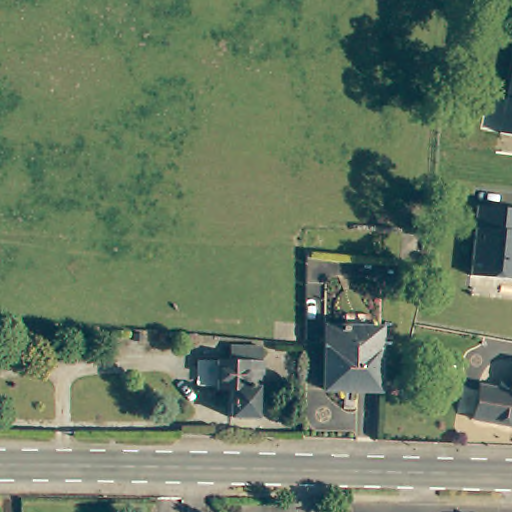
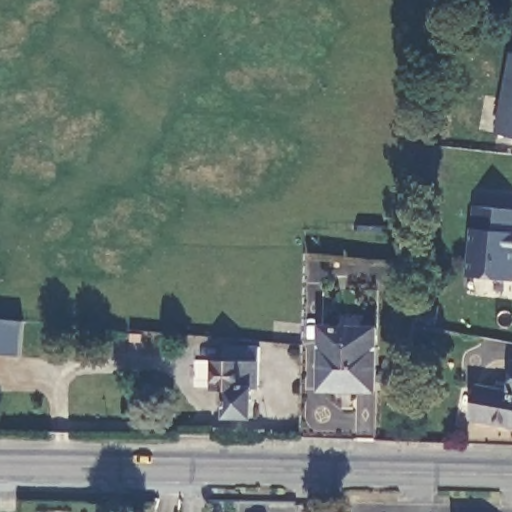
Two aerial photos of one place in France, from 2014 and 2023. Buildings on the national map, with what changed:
unchanged [(512,72),(512,137),(499,135),(512,72)]
unchanged [(512,281),(470,277),(476,206),(512,209),(512,281)]
unchanged [(352,328),(352,319),(368,319),(367,329),(380,330),(380,352),(325,348),(326,327),(352,328)]
new [(24,321),(27,353),(0,352),(0,321),(24,321)]
unchanged [(260,388),(255,388),(254,417),(227,416),(229,388),(216,387),(218,357),(230,357),(231,345),(261,346),(260,388)]
unchanged [(324,390),(325,348),(380,352),(379,377),(379,392),(324,390)]
unchanged [(493,390),(494,382),(500,383),(505,384),(509,362),(512,362),(512,427),(466,420),(473,386),(493,390)]

